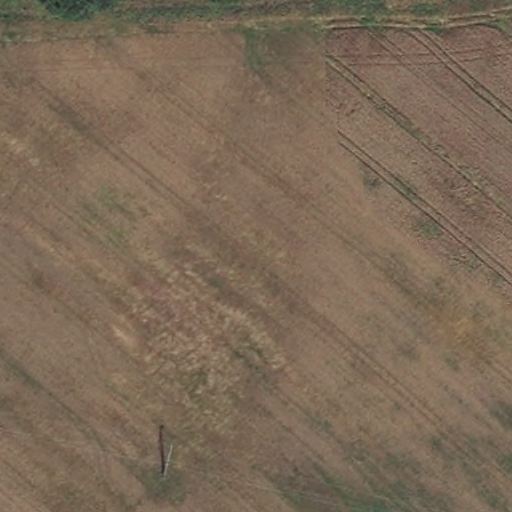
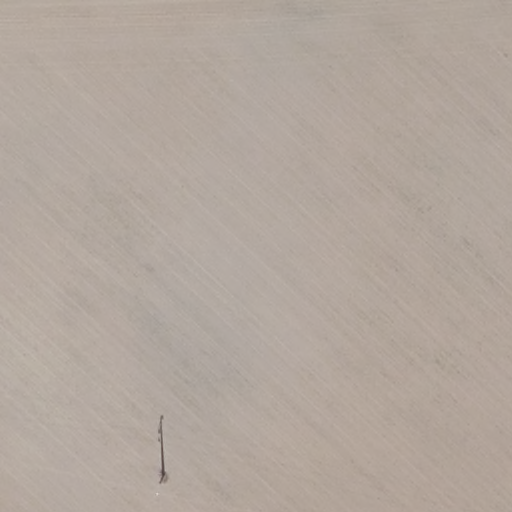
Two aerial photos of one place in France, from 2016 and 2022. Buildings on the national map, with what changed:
[]

